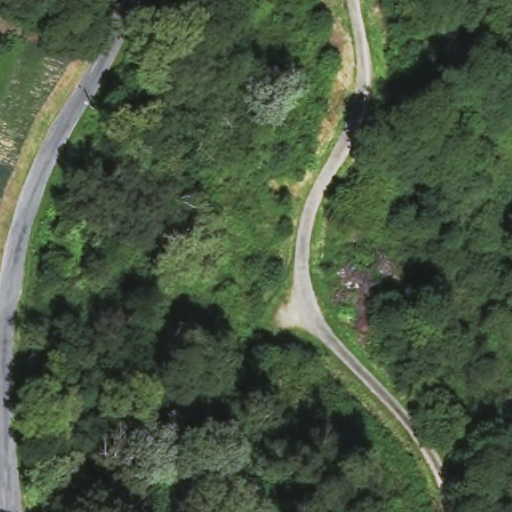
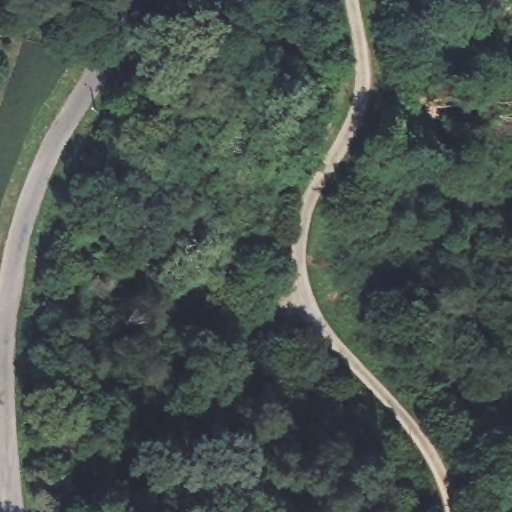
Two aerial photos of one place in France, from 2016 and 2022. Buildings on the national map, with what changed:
[]

